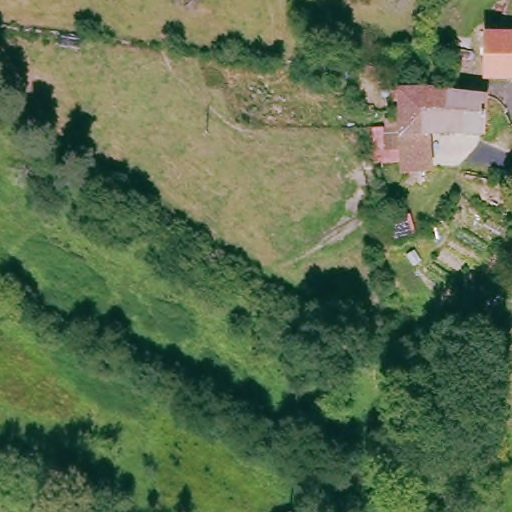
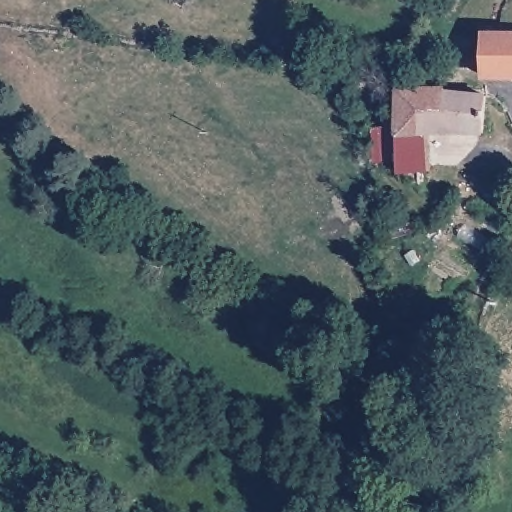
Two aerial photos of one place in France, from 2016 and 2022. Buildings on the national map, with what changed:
unchanged [(482,34),(512,34),(512,79),(482,79),(482,34)]
unchanged [(440,90),(440,94),(483,97),(485,134),(446,131),(428,133),(393,136),(393,89),(440,90)]
unchanged [(428,170),(394,173),(393,136),(428,133),(428,170)]

